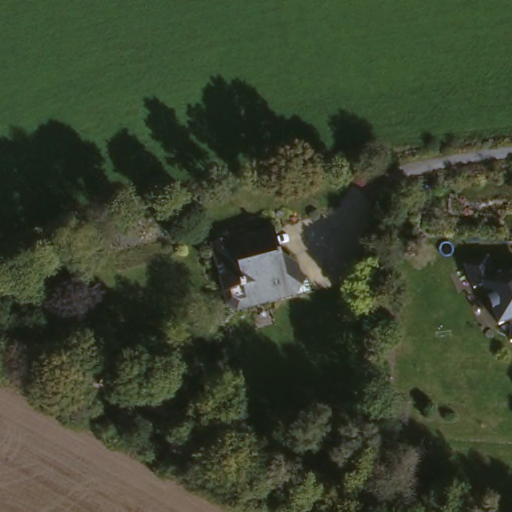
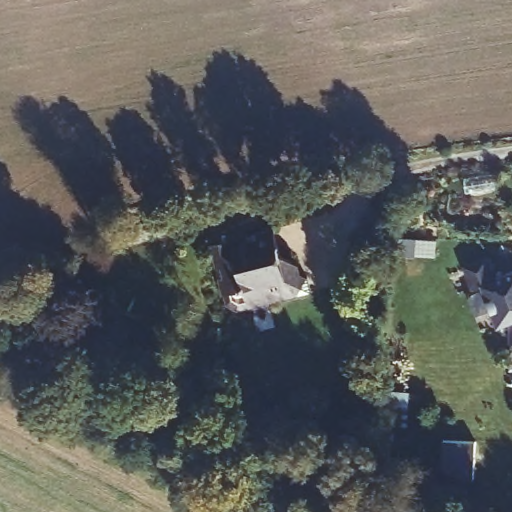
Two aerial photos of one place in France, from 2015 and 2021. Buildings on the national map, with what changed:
unchanged [(226,312),(221,290),(210,241),(273,226),(278,252),(295,265),(290,275),(297,282),(306,280),(309,294),(263,304),(261,296),(244,300),(245,308),(226,312)]
unchanged [(486,289),(477,294),(468,270),(493,259),(502,278),(512,274),(512,324),(500,329),(486,289)]
unchanged [(512,345),(510,345),(512,331),(512,345)]
new [(441,440),(475,442),(472,479),(458,478),(440,468),(441,440)]

